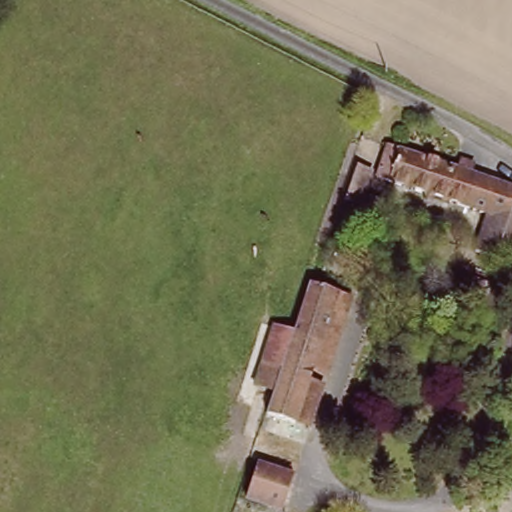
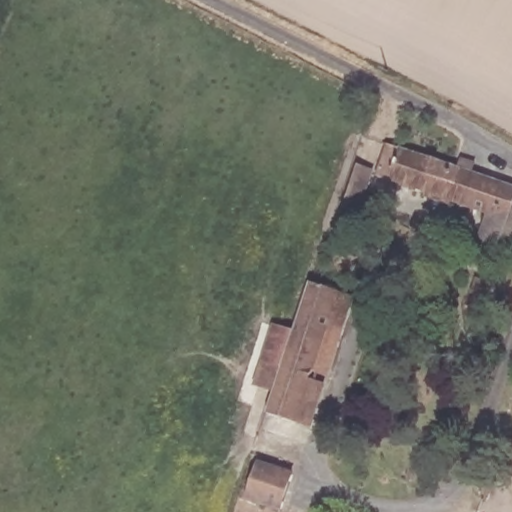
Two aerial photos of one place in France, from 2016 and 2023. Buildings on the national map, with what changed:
unchanged [(465,157),(478,160),(476,170),(512,182),(512,258),(480,247),(491,211),(381,175),(392,143),(461,165),(465,157)]
unchanged [(361,163),(374,167),(363,201),(351,197),(361,163)]
unchanged [(364,211),(370,192),(389,197),(381,223),(378,222),(362,217),(364,211)]
unchanged [(300,421),(270,411),(277,388),(260,382),(278,323),(296,329),(311,281),(340,289),(316,367),(313,378),(326,382),(311,425),(300,421)]
unchanged [(474,286),(490,290),(487,305),(470,301),(474,286)]
unchanged [(330,371),(316,367),(340,289),(355,293),(330,371)]
unchanged [(262,463),(295,474),(283,509),(250,497),(262,463)]

